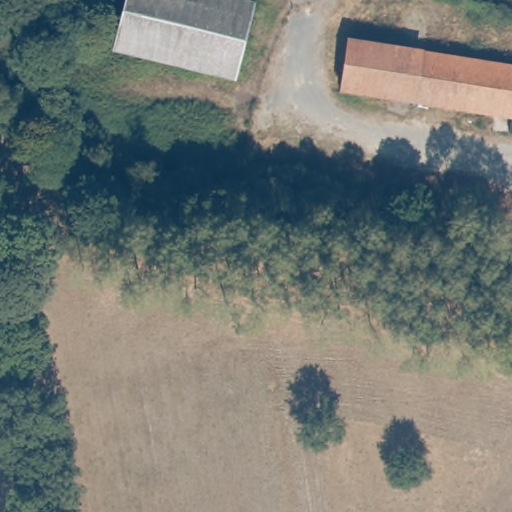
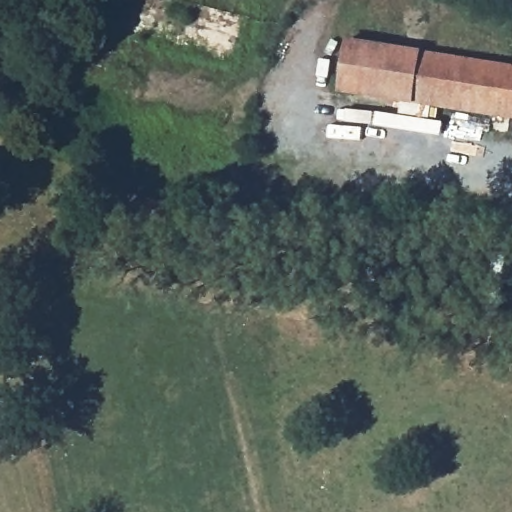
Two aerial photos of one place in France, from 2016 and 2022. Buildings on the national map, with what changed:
demolished [(234,77),(123,54),(134,0),(248,0),(250,1),(234,77)]
unchanged [(495,108),(348,91),(354,41),(512,59),(512,121),(494,119),(495,108)]
demolished [(498,201),(512,203),(512,235),(491,235),(498,201)]
demolished [(491,235),(512,235),(512,317),(474,310),(491,235)]

